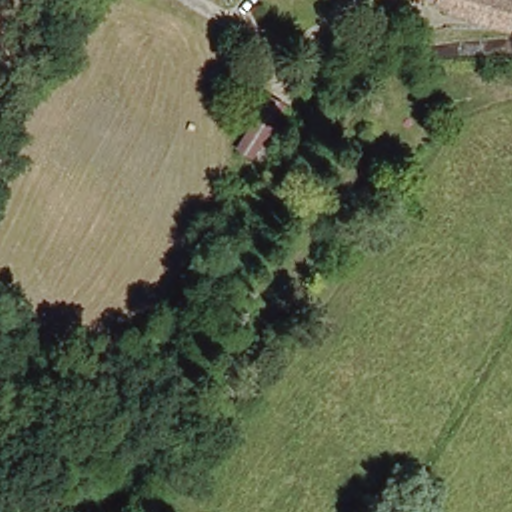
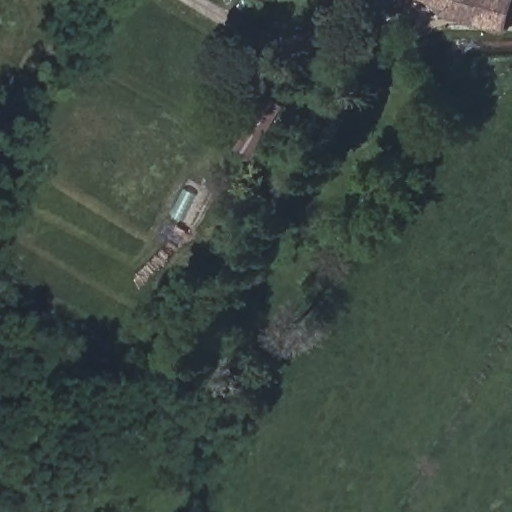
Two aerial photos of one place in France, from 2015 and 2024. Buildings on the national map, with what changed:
unchanged [(444,10),(439,17),(416,0),(451,0),(444,10)]
unchanged [(512,21),(509,30),(452,16),(444,10),(451,0),(512,0),(512,21)]
unchanged [(251,159),(232,150),(267,94),(286,104),(251,159)]

